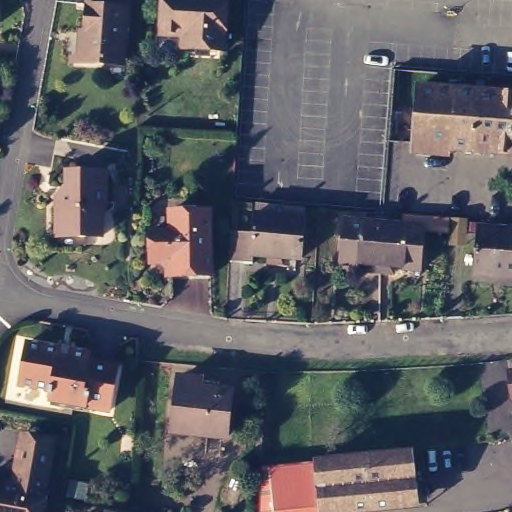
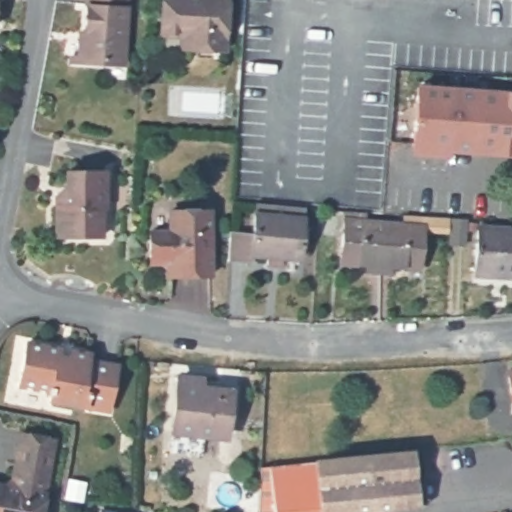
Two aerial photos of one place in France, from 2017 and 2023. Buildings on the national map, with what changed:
unchanged [(78,57),(80,35),(80,28),(85,29),(87,0),(127,0),(123,55),(123,60),(105,59),(78,57)]
unchanged [(188,40),(188,26),(165,25),(166,0),(232,0),(230,41),(188,40)]
unchanged [(449,146),(450,140),(417,137),(417,143),(414,143),(418,83),(512,89),(512,151),(449,146)]
unchanged [(62,230),(62,204),(72,194),(72,171),(111,171),(111,207),(107,211),(107,236),(86,236),(63,236),(62,230)]
unchanged [(300,255),(254,251),(252,260),(228,257),(230,227),(253,230),(257,197),(305,202),(300,255)]
unchanged [(215,205),(215,271),(177,272),(177,260),(172,255),(156,255),(155,227),(176,226),(175,206),(215,205)]
unchanged [(380,274),(366,273),(367,265),(340,263),(345,211),(365,214),(364,223),(383,225),(380,274)]
unchanged [(405,215),(443,219),(450,219),(449,233),(423,231),(420,270),(395,267),(393,275),(380,274),(383,225),(403,226),(405,215)]
unchanged [(448,250),(449,233),(450,220),(466,221),(464,250),(448,250)]
unchanged [(497,273),(497,270),(480,269),(482,224),(503,225),(503,221),(509,221),(509,225),(512,226),(512,271),(508,271),(508,275),(497,273)]
unchanged [(88,357),(117,362),(110,406),(51,396),(52,386),(20,381),(27,337),(60,343),(60,337),(70,339),(70,345),(90,348),(88,357)]
unchanged [(512,366),(512,396),(507,366),(512,366)]
unchanged [(183,373),(205,375),(205,383),(235,387),(230,433),(177,427),(183,373)]
unchanged [(0,481),(5,482),(14,475),(20,441),(22,428),(54,434),(52,447),(40,512),(0,512),(0,481)]
unchanged [(260,463),(452,443),(454,471),(430,473),(430,476),(408,479),(410,502),(325,510),(326,512),(259,512),(260,463)]
unchanged [(97,511),(102,512),(96,512),(97,511)]

